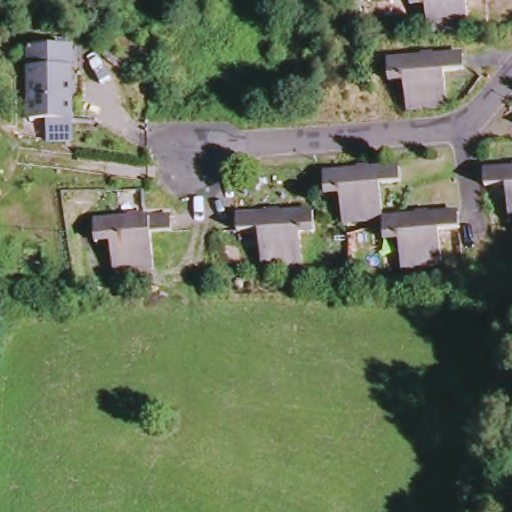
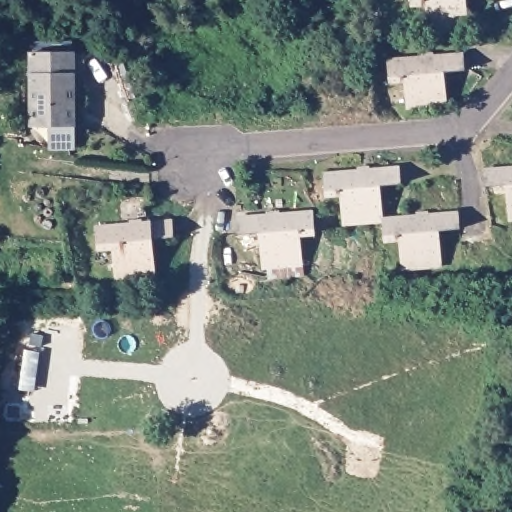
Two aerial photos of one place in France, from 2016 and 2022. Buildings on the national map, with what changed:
unchanged [(460,19),(425,22),(423,0),(459,0),(460,19)]
unchanged [(458,52),(459,68),(440,69),(441,103),(402,106),(400,77),(384,78),(382,57),(458,52)]
unchanged [(28,127),(26,55),(69,54),(79,54),(80,104),(70,104),(70,127),(28,127)]
unchanged [(339,217),(336,189),(320,190),(319,169),(395,163),(395,179),(376,180),(379,215),(339,217)]
unchanged [(503,182),(481,184),(481,168),(512,165),(512,217),(506,217),(503,182)]
unchanged [(308,207),(310,227),(295,229),(296,260),(258,262),(255,227),(233,229),(232,212),(308,207)]
unchanged [(455,207),(455,225),(436,226),(437,259),(397,262),(396,234),(380,235),(379,215),(455,207)]
unchanged [(166,219),(167,235),(147,237),(150,272),(111,275),(109,244),(93,245),(91,225),(166,219)]

